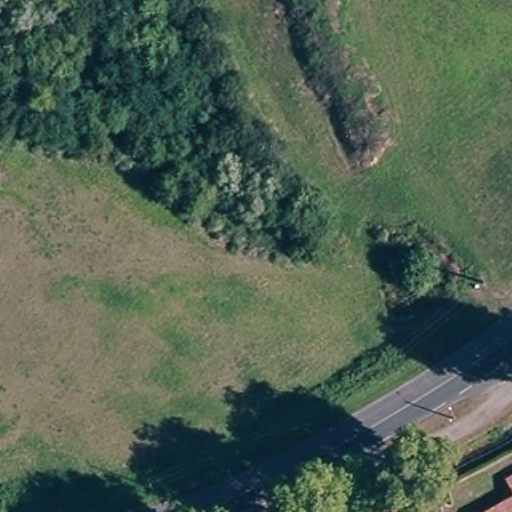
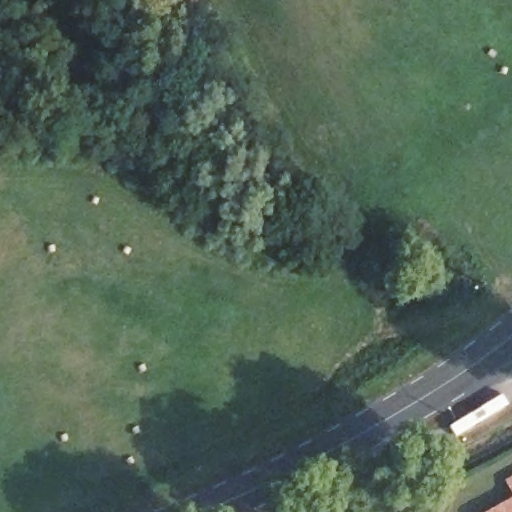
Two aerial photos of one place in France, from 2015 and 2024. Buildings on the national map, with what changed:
unchanged [(512,470),(512,476),(510,471),(512,470)]
unchanged [(478,508),(512,490),(512,512),(479,512),(478,508)]

